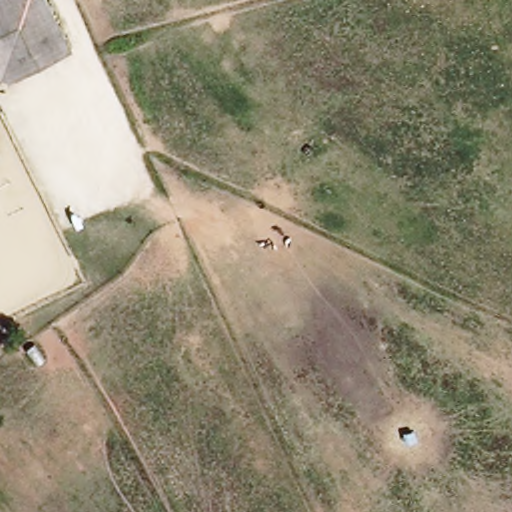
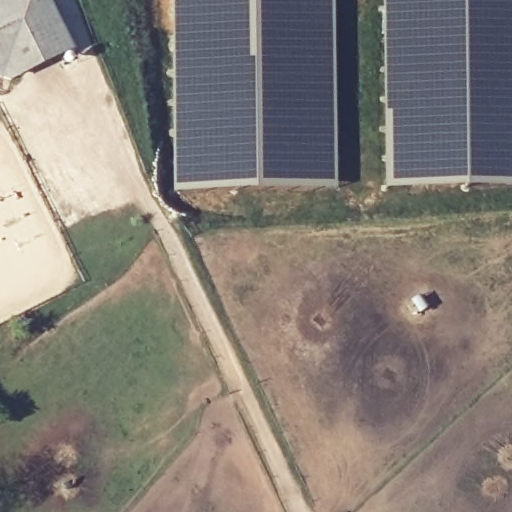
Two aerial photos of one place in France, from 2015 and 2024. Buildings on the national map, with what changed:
unchanged [(1,0),(42,0),(45,1),(71,56),(21,80),(0,69),(0,0),(1,0)]
new [(173,190),(172,0),(335,0),(336,187),(173,190)]
new [(383,189),(381,0),(512,0),(512,186),(486,187),(383,189)]

